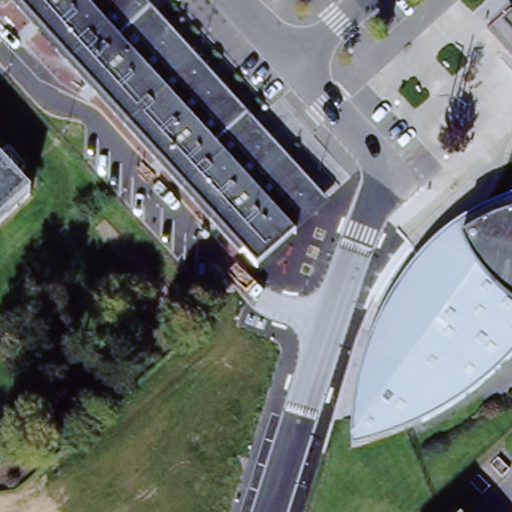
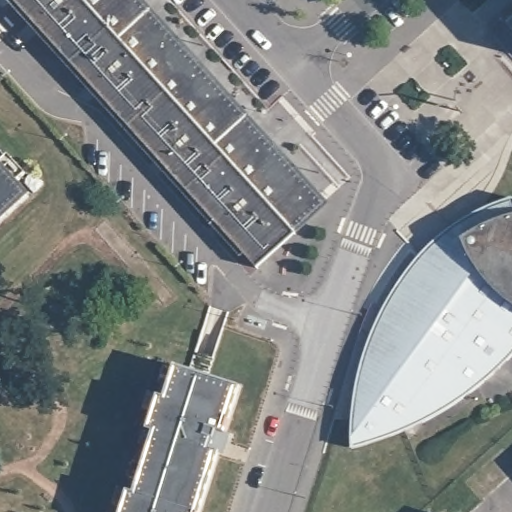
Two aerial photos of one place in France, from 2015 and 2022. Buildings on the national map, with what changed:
unchanged [(290,231),(287,228),(249,261),(14,0),(144,0),(325,200),(290,231)]
unchanged [(505,25),(512,19),(512,32),(505,25)]
unchanged [(0,210),(0,167),(22,191),(0,210)]
unchanged [(511,215),(512,215),(512,350),(491,373),(460,397),(447,407),(399,433),(347,449),(348,432),(349,406),(350,396),(355,372),(362,344),(375,320),(384,299),(386,295),(404,271),(413,259),(418,252),(427,259),(432,252),(442,242),(444,239),(472,216),(482,211),(506,200),(511,215)]
new [(200,512),(121,512),(128,491),(135,493),(155,433),(148,431),(159,396),(166,398),(176,367),(240,387),(200,512)]

